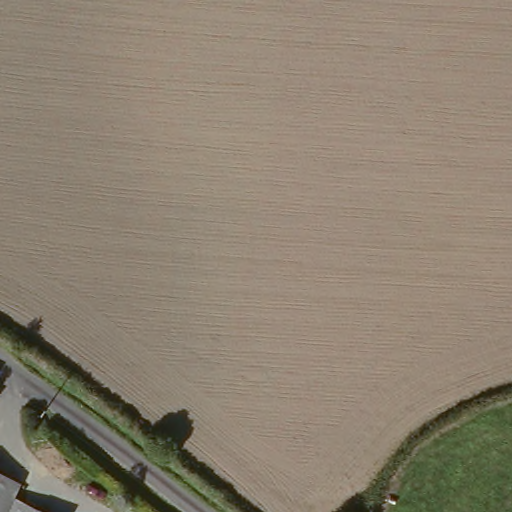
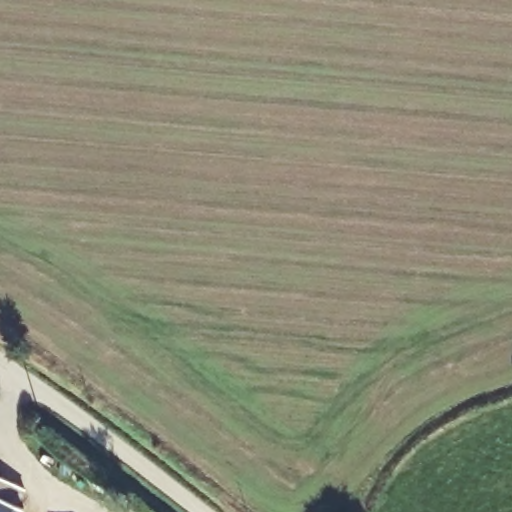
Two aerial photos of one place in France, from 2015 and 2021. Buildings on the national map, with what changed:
unchanged [(4,401),(0,406),(0,398),(4,401)]
unchanged [(16,496),(14,502),(11,508),(9,512),(0,512),(0,487),(16,496)]
unchanged [(17,512),(9,512),(11,508),(17,512)]

